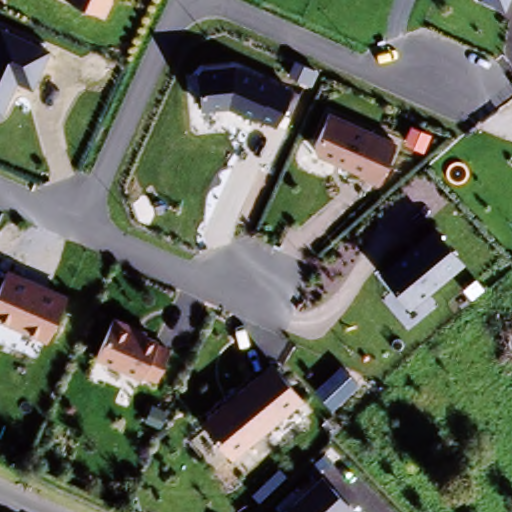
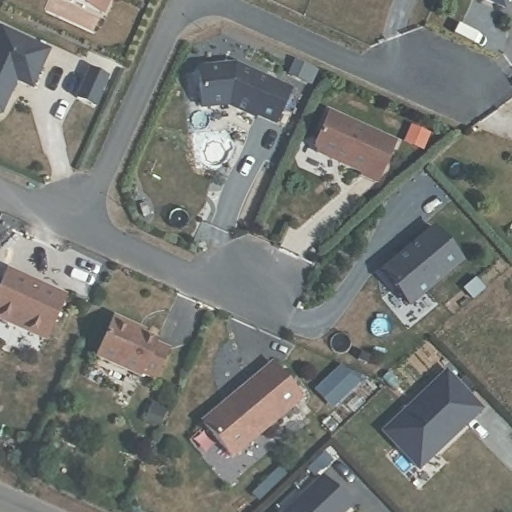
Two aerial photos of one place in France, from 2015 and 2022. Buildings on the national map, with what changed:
unchanged [(104,17),(64,0),(111,0),(104,17)]
unchanged [(503,12),(476,0),(509,0),(503,12)]
unchanged [(49,50),(31,91),(14,84),(2,114),(0,116),(0,30),(49,50)]
unchanged [(234,65),(291,89),(275,127),(227,107),(200,110),(195,70),(234,65)]
unchanged [(394,141),(378,185),(358,177),(358,174),(318,156),(313,148),(326,114),(394,141)]
unchanged [(432,227),(463,264),(408,310),(377,272),(432,227)]
unchanged [(69,296),(52,339),(0,320),(0,291),(9,270),(69,296)]
new [(474,296),(467,288),(476,281),(483,289),(474,296)]
unchanged [(176,347),(161,383),(98,360),(115,320),(176,347)]
unchanged [(305,397),(235,456),(205,420),(273,361),(305,397)]
new [(340,368),(356,384),(349,391),(335,404),(319,388),(333,374),(340,368)]
new [(485,410),(418,471),(379,432),(446,370),(485,410)]
unchanged [(351,509),(347,512),(282,512),(320,476),(351,509)]

